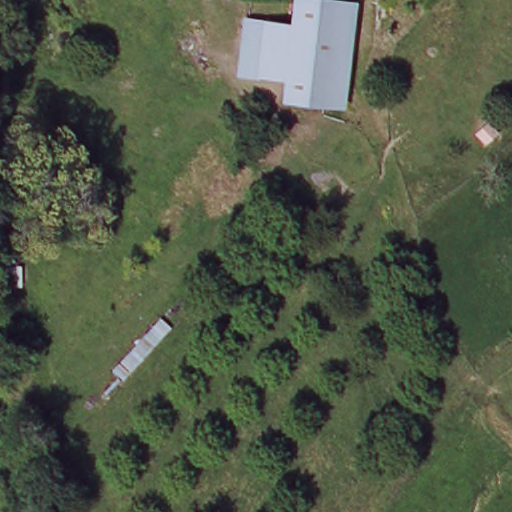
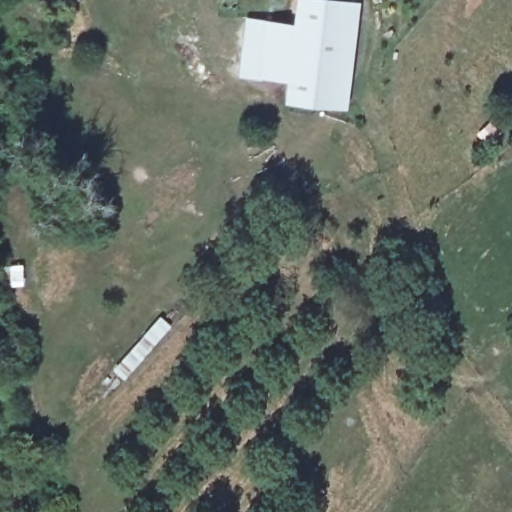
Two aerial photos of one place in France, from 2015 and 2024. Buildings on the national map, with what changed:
unchanged [(346,111),(283,104),(284,82),(238,78),(243,20),(290,24),(294,0),(324,0),(357,4),(346,111)]

